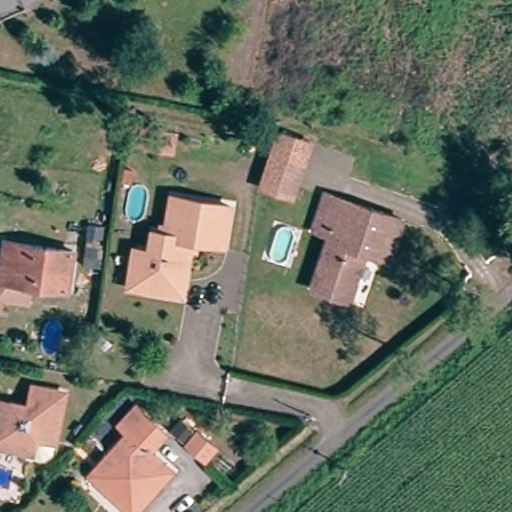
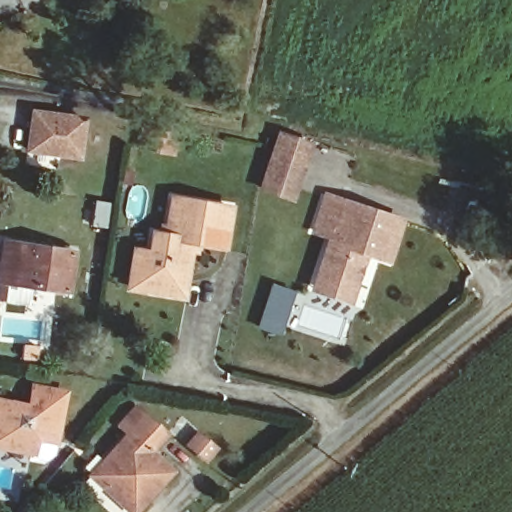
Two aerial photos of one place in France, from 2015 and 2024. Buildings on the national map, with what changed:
new [(26,152),(31,110),(88,117),(82,160),(26,152)]
unchanged [(144,129),(179,135),(176,156),(140,150),(144,129)]
unchanged [(277,135),(307,141),(295,197),(266,192),(277,135)]
unchanged [(308,293),(312,280),(326,242),(309,236),(312,227),(322,198),(399,225),(385,265),(361,256),(353,276),(350,285),(342,305),(308,293)]
unchanged [(139,264),(152,267),(156,247),(164,248),(167,238),(173,239),(179,209),(232,219),(224,259),(198,255),(196,266),(188,265),(181,307),(147,301),(133,299),(139,264)]
unchanged [(65,291),(0,279),(8,241),(73,253),(65,291)]
unchanged [(26,407),(29,389),(60,394),(51,444),(33,441),(30,455),(1,450),(0,450),(0,402),(26,407)]
unchanged [(123,444),(113,435),(133,415),(164,446),(145,465),(167,487),(143,512),(113,512),(94,493),(84,485),(99,469),(123,444)]
unchanged [(184,449),(195,438),(210,453),(198,464),(184,449)]

